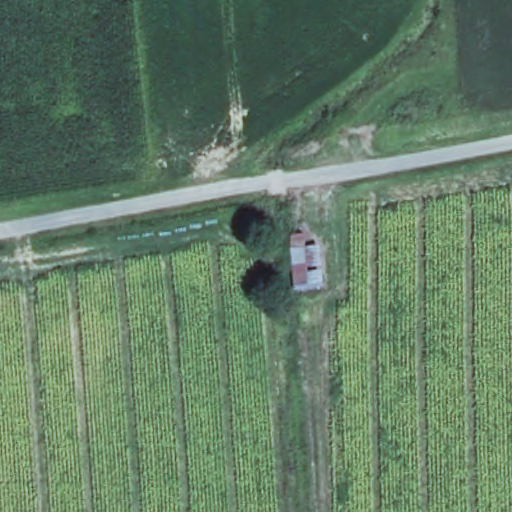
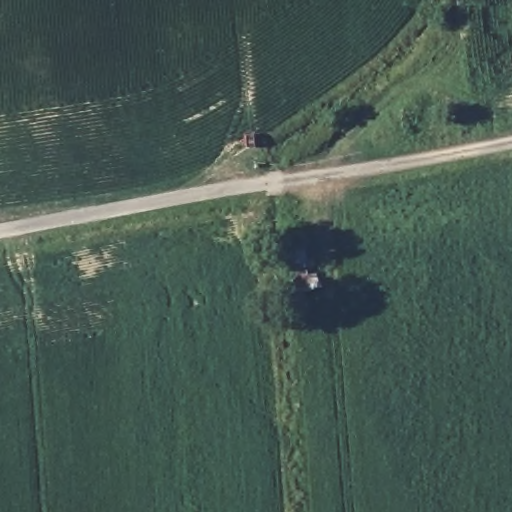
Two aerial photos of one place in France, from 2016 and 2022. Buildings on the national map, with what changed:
unchanged [(290,244),(324,240),(326,268),(330,295),(298,294),(290,244)]

